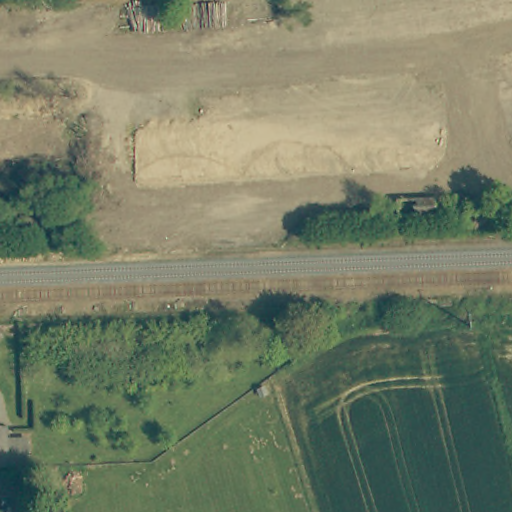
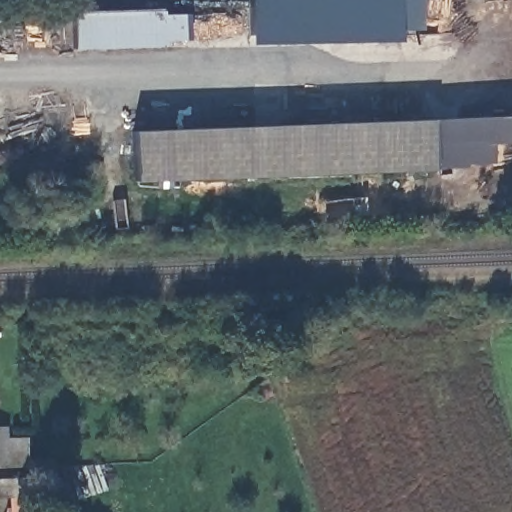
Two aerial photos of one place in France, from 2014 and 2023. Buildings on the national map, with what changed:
new [(250,0),(424,0),(424,27),(403,28),(402,40),(252,43),(250,0)]
new [(74,13),(163,10),(165,46),(75,50),(74,13)]
new [(512,115),(512,142),(493,142),(493,162),(437,165),(434,119),(512,115)]
new [(434,119),(437,172),(136,181),(134,129),(434,119)]
demolished [(436,216),(399,218),(398,202),(435,200),(436,216)]
unchanged [(11,438),(31,437),(32,465),(5,466),(0,466),(0,427),(11,427),(11,438)]
unchanged [(6,512),(6,499),(0,500),(0,482),(18,481),(18,512),(6,512)]

